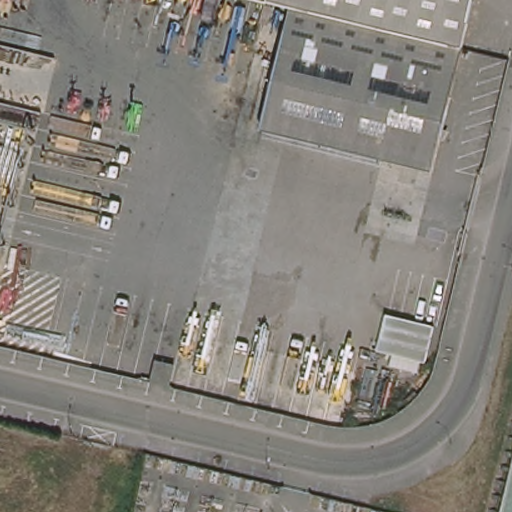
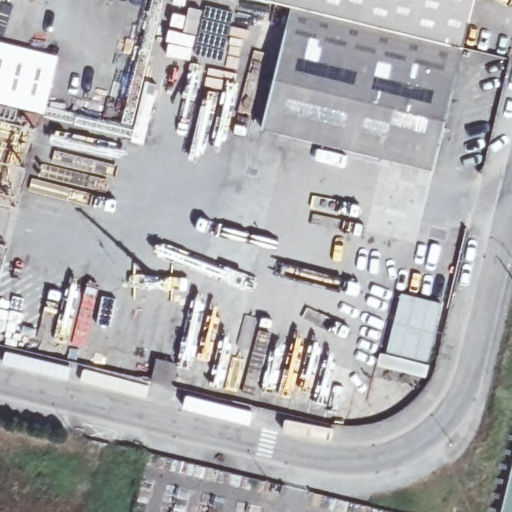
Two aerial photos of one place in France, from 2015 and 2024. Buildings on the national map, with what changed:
unchanged [(251,0),(267,0),(266,4),(251,0)]
unchanged [(266,4),(267,0),(475,0),(464,49),(292,10),(266,4)]
unchanged [(455,71),(430,171),(261,130),(285,31),(455,71)]
new [(44,115),(0,104),(0,40),(59,55),(44,115)]
unchanged [(427,365),(377,351),(386,313),(436,325),(427,365)]
unchanged [(185,389),(164,383),(169,365),(190,370),(185,389)]

